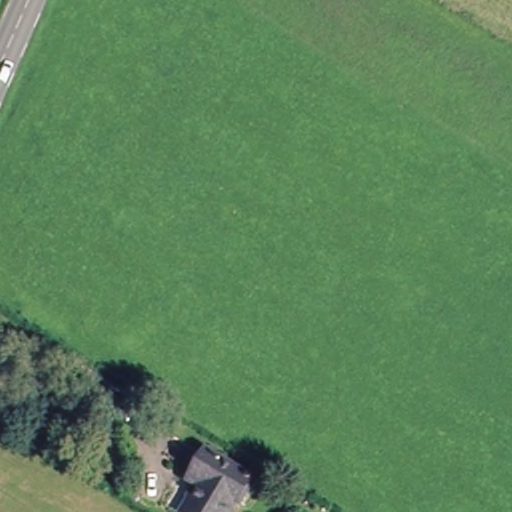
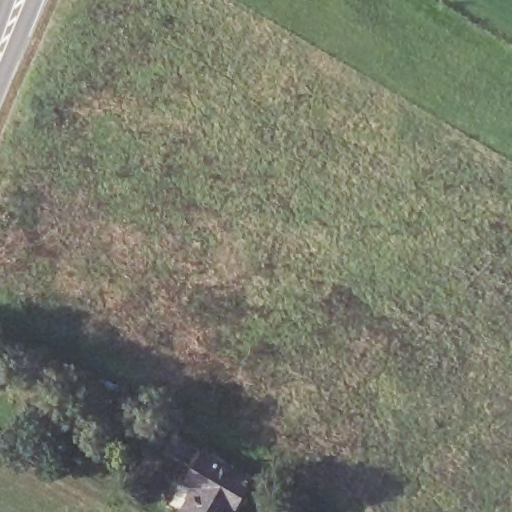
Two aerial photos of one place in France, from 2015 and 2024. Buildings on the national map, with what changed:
unchanged [(182,512),(205,476),(195,470),(206,450),(254,477),(233,512),(182,512)]

